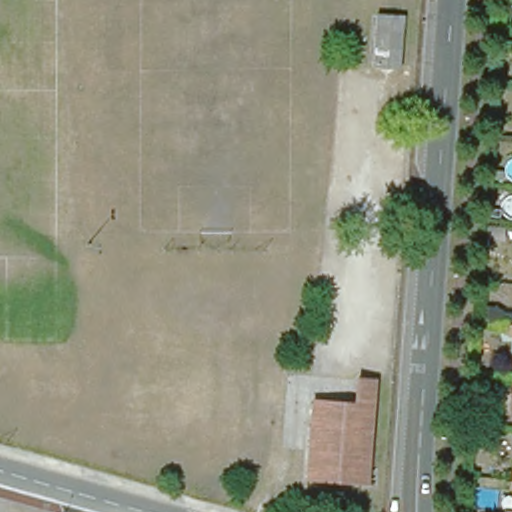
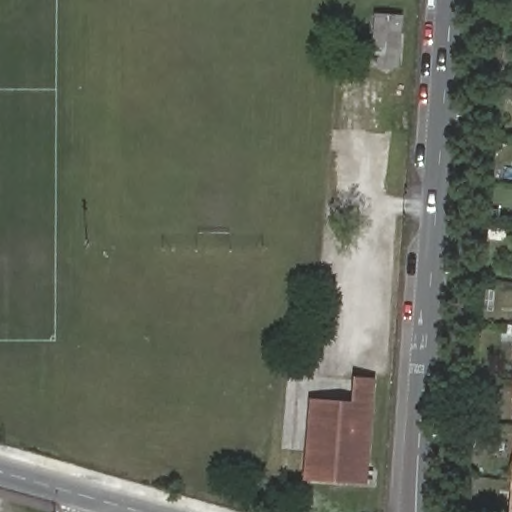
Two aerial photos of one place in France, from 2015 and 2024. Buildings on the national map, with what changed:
unchanged [(404,18),(401,67),(375,66),(377,16),(404,18)]
unchanged [(376,388),(368,493),(306,488),(312,411),(355,414),(357,387),(376,388)]

